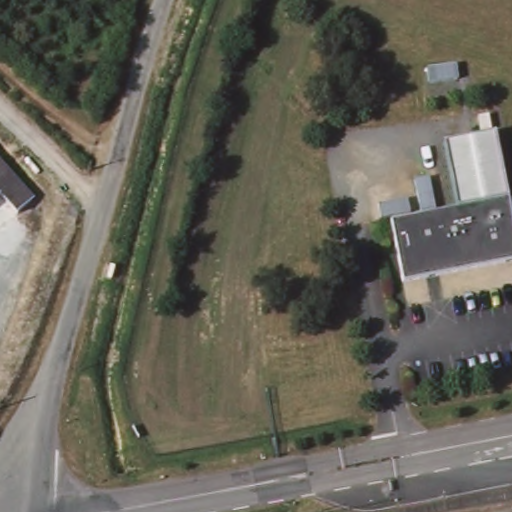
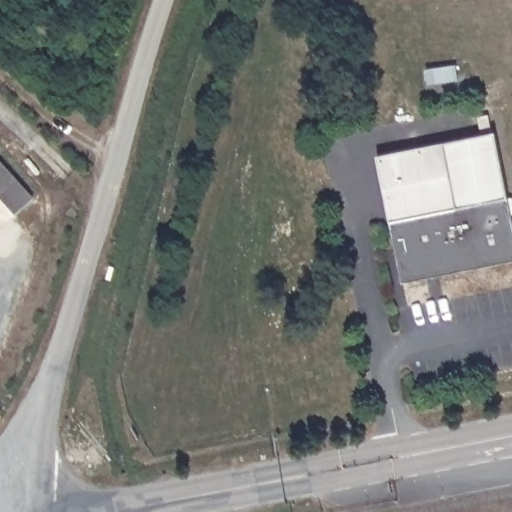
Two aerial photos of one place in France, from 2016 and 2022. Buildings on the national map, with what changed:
unchanged [(442,142),(495,133),(512,222),(512,261),(400,283),(389,221),(454,209),(442,142)]
new [(377,155),(442,142),(454,209),(389,221),(377,155)]
unchanged [(28,202),(14,215),(0,200),(0,171),(28,202)]

